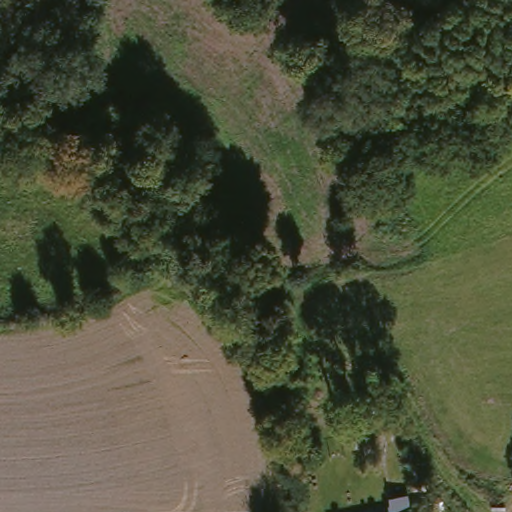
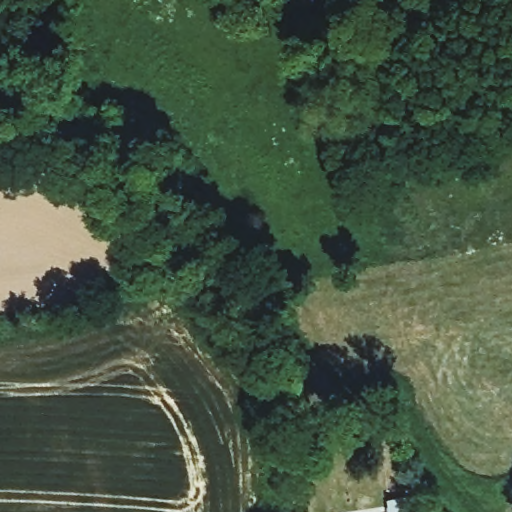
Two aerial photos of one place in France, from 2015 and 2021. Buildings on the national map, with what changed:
unchanged [(403,478),(408,512),(392,512),(387,480),(403,478)]

